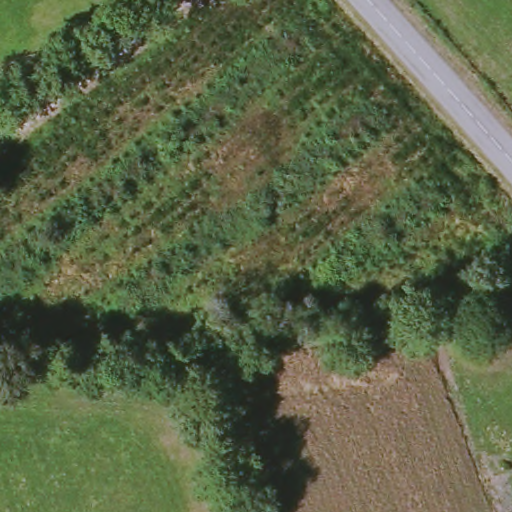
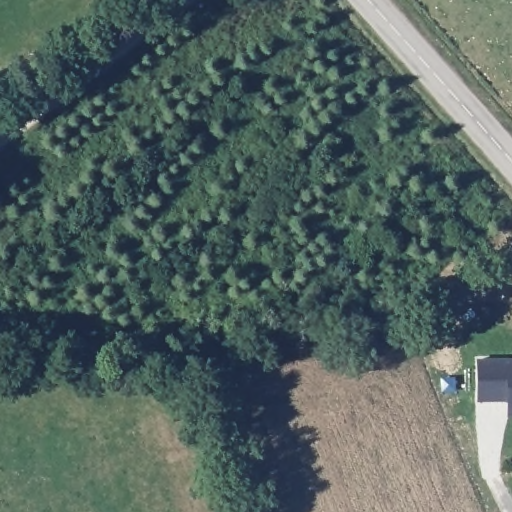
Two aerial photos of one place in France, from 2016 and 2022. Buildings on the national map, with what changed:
new [(507,415),(507,403),(475,402),(476,358),(512,357),(512,414),(507,415)]

